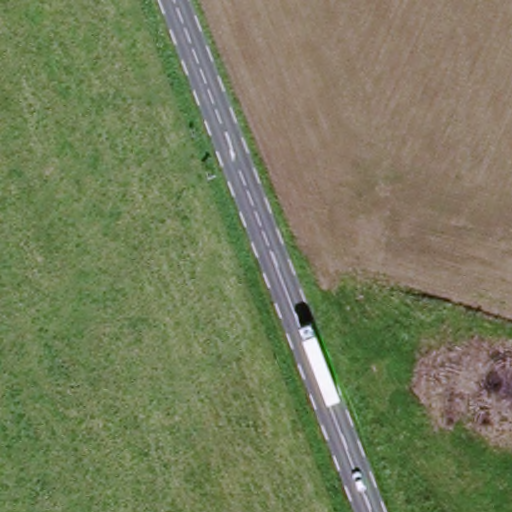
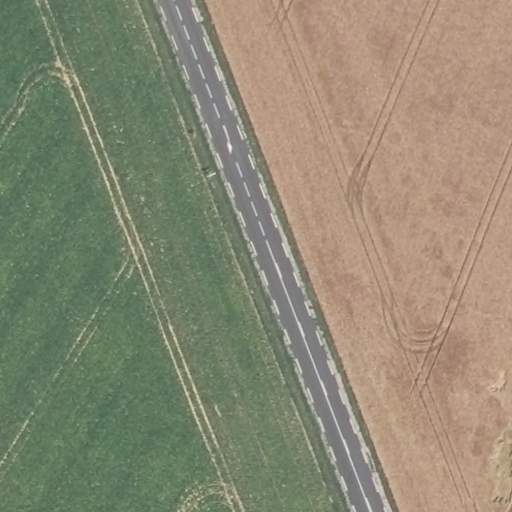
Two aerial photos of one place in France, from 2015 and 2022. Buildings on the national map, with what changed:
[]

